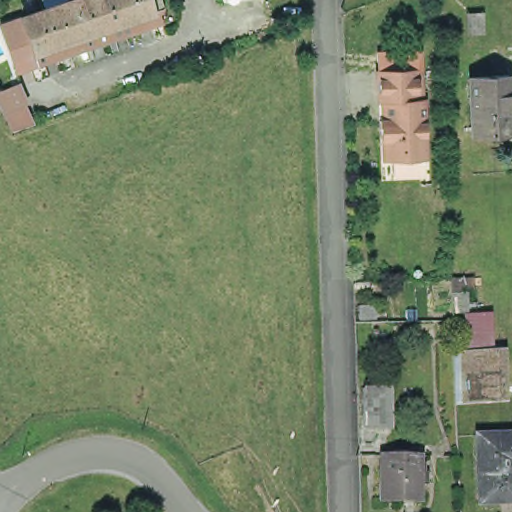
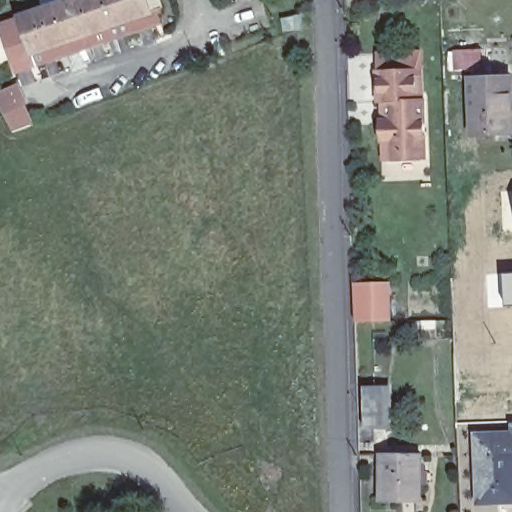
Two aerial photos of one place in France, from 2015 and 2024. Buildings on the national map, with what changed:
unchanged [(19,19),(44,10),(55,6),(69,1),(72,0),(149,0),(151,8),(156,20),(133,29),(109,37),(85,46),(61,55),(36,64),(15,71),(12,65),(0,31),(0,26),(19,19)]
unchanged [(231,2),(231,0),(238,0),(231,2)]
unchanged [(383,159),(381,139),(374,140),(373,120),(379,119),(378,100),(371,101),(369,70),(406,67),(413,66),(415,96),(420,155),(383,159)]
unchanged [(23,82),(35,125),(11,130),(0,106),(0,90),(23,82)]
unchanged [(471,141),(469,85),(507,83),(508,111),(512,111),(512,123),(512,141),(492,141),(471,141)]
new [(512,218),(509,187),(512,187),(512,218)]
new [(502,273),(512,272),(512,305),(506,305),(502,273)]
new [(389,282),(391,321),(356,322),(354,283),(389,282)]
unchanged [(484,290),(485,301),(466,303),(461,304),(461,291),(466,290),(484,290)]
unchanged [(510,402),(473,405),(469,356),(507,353),(510,402)]
unchanged [(361,380),(391,380),(392,424),(363,425),(361,380)]
unchanged [(487,438),(512,436),(512,506),(509,506),(491,507),(490,500),(487,438)]
unchanged [(376,450),(429,453),(423,500),(374,495),(376,450)]

